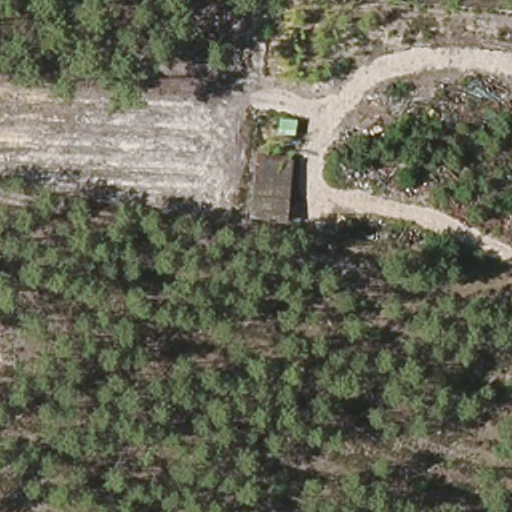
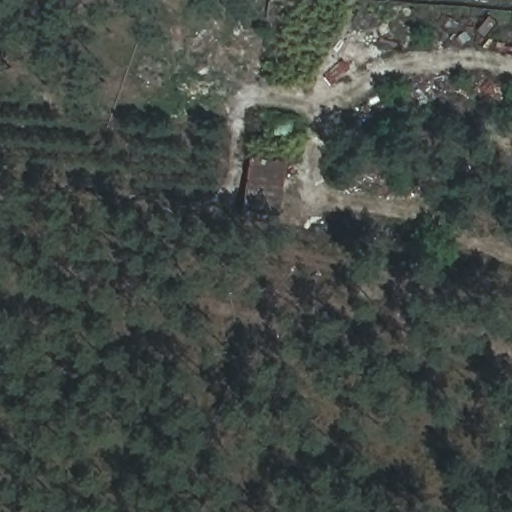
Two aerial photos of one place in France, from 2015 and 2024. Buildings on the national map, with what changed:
unchanged [(292,137),(276,136),(278,117),(294,120),(292,137)]
unchanged [(291,162),(281,229),(238,222),(256,156),(291,162)]

